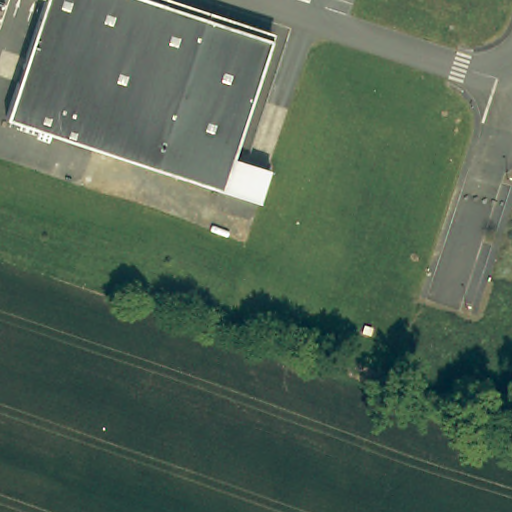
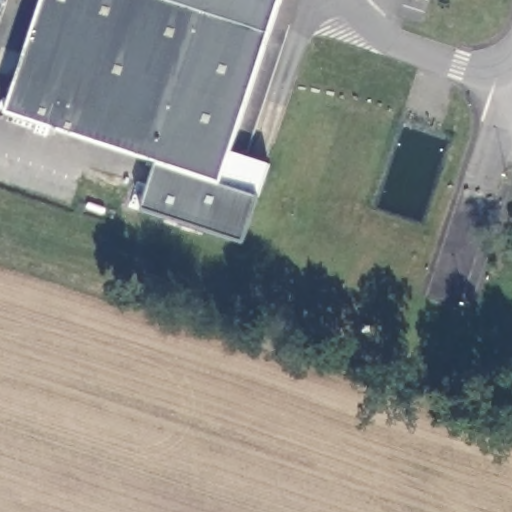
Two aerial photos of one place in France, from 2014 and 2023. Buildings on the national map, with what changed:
unchanged [(153,163),(5,115),(43,0),(165,0),(203,12),(153,163)]
new [(203,12),(165,0),(283,0),(271,34),(203,12)]
unchanged [(203,12),(271,34),(232,154),(269,166),(259,198),(219,185),(153,163),(203,12)]
new [(142,211),(158,164),(219,185),(259,198),(243,244),(142,211)]

